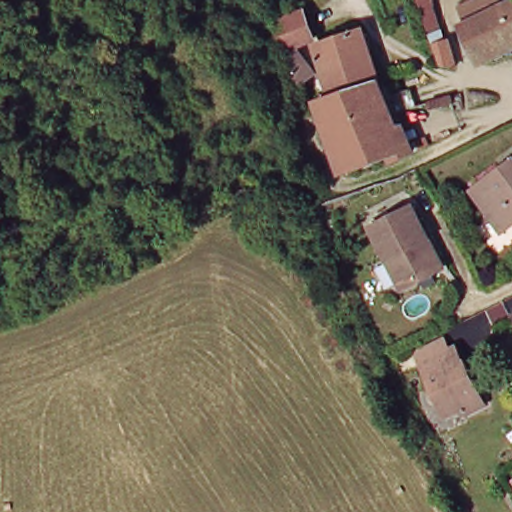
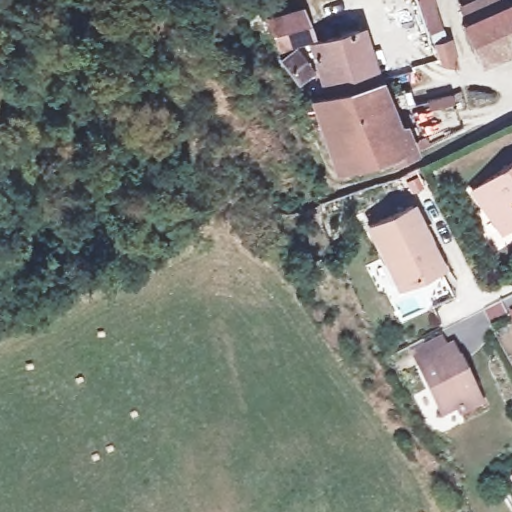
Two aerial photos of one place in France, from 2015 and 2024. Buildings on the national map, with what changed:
unchanged [(436,65),(418,0),(443,0),(460,57),(436,65)]
unchanged [(491,27),(484,12),(509,0),(512,0),(512,52),(496,60),(485,30),(491,27)]
unchanged [(286,52),(293,50),(282,17),(312,7),(320,44),(307,48),(309,55),(320,77),(309,81),(286,52)]
unchanged [(324,51),(371,37),(387,87),(339,100),(324,51)]
unchanged [(451,76),(450,70),(447,64),(457,61),(461,73),(451,76)]
unchanged [(387,87),(393,102),(420,95),(427,112),(399,122),(407,146),(412,144),(417,155),(413,157),(409,159),(402,161),(399,155),(351,172),(325,104),(339,100),(387,87)]
unchanged [(500,232),(470,190),(512,160),(512,224),(500,232)]
unchanged [(444,268),(406,287),(376,224),(420,202),(436,235),(451,265),(444,268)]
unchanged [(467,357),(470,355),(492,399),(469,411),(466,406),(451,413),(425,361),(419,349),(449,335),(455,347),(460,343),(467,357)]

